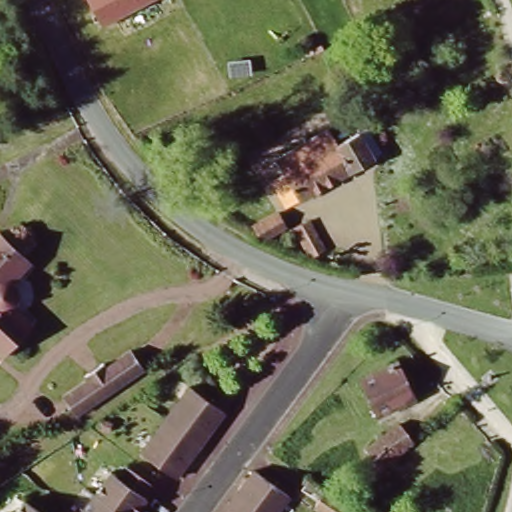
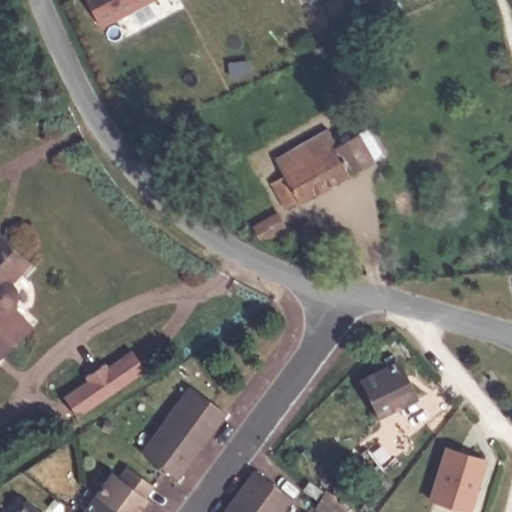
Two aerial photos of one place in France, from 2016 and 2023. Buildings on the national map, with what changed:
unchanged [(89,0),(153,0),(102,27),(89,0)]
unchanged [(287,210),(270,180),(289,176),(272,153),(330,124),(337,143),(370,125),(389,155),(287,210)]
unchanged [(260,245),(250,221),(280,207),(290,229),(260,245)]
unchanged [(292,227),(312,219),(328,248),(312,258),(292,227)]
unchanged [(0,228),(34,263),(15,280),(20,287),(20,298),(14,306),(35,322),(1,360),(0,359),(0,228)]
unchanged [(80,414),(67,397),(92,381),(89,375),(106,363),(110,369),(135,352),(147,369),(80,414)]
unchanged [(415,401),(378,417),(360,380),(396,362),(415,401)]
unchanged [(139,450),(187,383),(232,409),(178,478),(139,450)]
unchanged [(387,433),(398,425),(412,440),(381,464),(367,448),(387,433)]
new [(467,512),(427,499),(444,445),(487,459),(471,512),(467,512)]
unchanged [(108,469),(120,479),(129,461),(156,482),(132,512),(78,512),(77,512),(108,469)]
unchanged [(297,494),(283,512),(221,512),(256,467),(297,494)]
unchanged [(47,512),(14,512),(25,494),(47,512)]
unchanged [(0,512),(0,510),(3,512),(0,512)]

